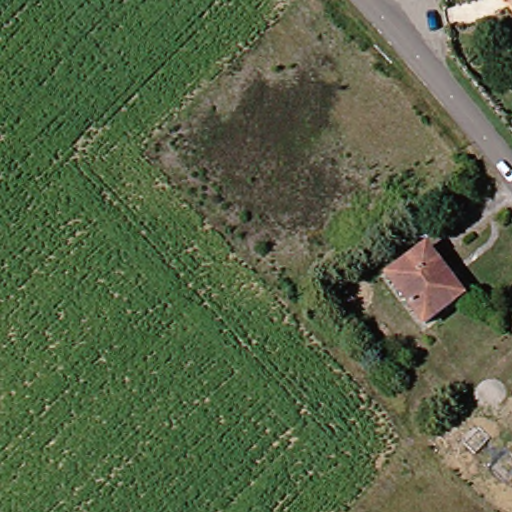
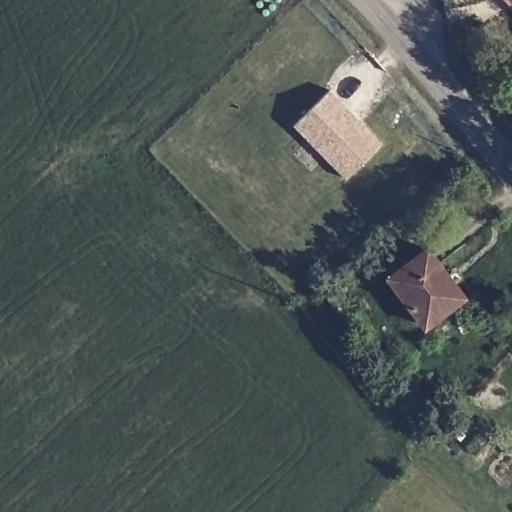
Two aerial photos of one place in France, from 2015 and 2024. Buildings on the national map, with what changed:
unchanged [(510,0),(512,0),(512,2),(510,0)]
new [(384,146),(347,181),(294,127),(330,92),(384,146)]
unchanged [(429,252),(471,298),(431,329),(390,282),(429,252)]
unchanged [(343,283),(351,293),(338,302),(332,293),(343,283)]

